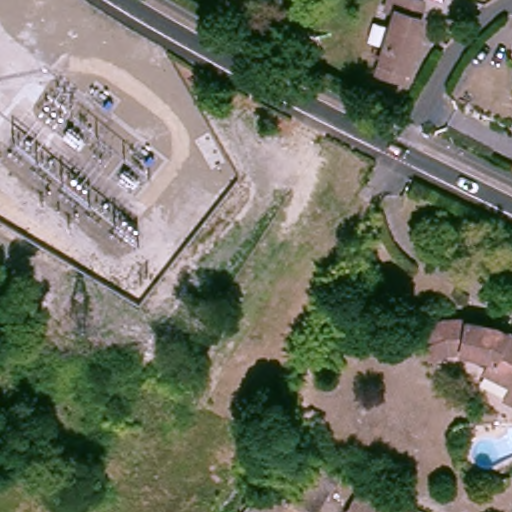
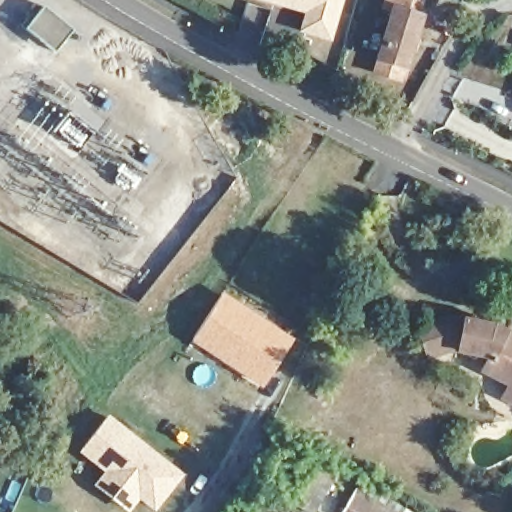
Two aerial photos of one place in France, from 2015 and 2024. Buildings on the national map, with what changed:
new [(304,11),(263,0),(343,0),(332,40),(300,31),(304,11)]
new [(403,81),(371,73),(375,60),(390,4),(382,1),(383,0),(429,0),(425,15),(408,70),(403,81)]
demolished [(412,4),(419,7),(402,59),(377,50),(393,0),(413,0),(412,4)]
demolished [(410,66),(403,87),(369,75),(375,55),(410,66)]
demolished [(49,120),(27,103),(37,87),(61,105),(49,120)]
new [(222,291),(294,340),(261,388),(189,340),(222,291)]
unchanged [(493,357),(487,353),(478,351),(460,353),(431,361),(419,330),(458,317),(465,316),(499,323),(512,329),(512,383),(487,370),(493,357)]
unchanged [(512,388),(512,400),(506,397),(512,388)]
new [(129,512),(128,512),(94,485),(103,471),(79,451),(108,415),(184,474),(154,510),(139,500),(129,512)]
unchanged [(310,458),(373,497),(368,506),(351,497),(349,501),(331,491),(317,512),(316,512),(298,500),(313,475),(302,468),(310,458)]
unchanged [(351,497),(368,506),(373,497),(392,506),(401,512),(343,512),(349,501),(351,497)]

